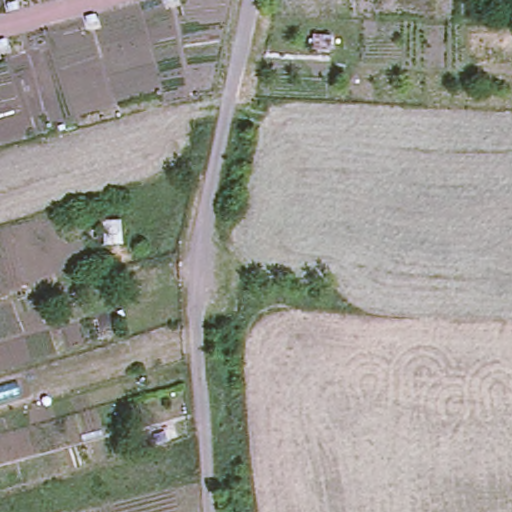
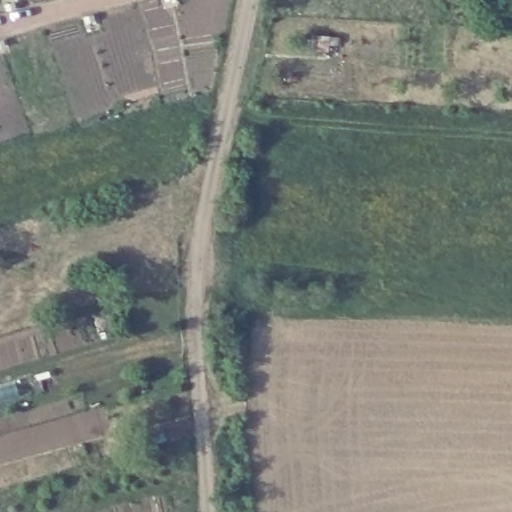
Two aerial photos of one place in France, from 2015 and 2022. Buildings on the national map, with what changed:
unchanged [(121,219),(122,245),(102,247),(102,240),(91,239),(91,226),(101,225),(101,220),(121,219)]

